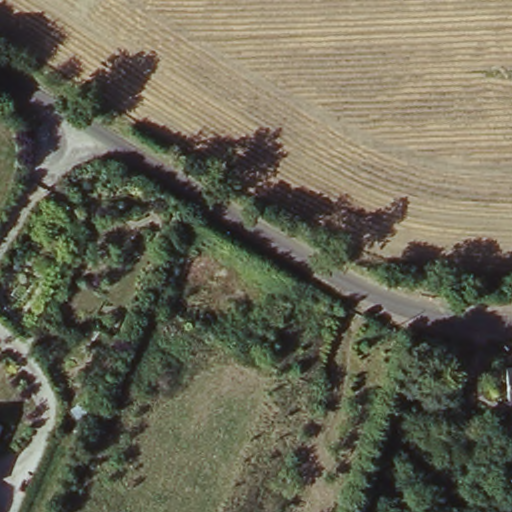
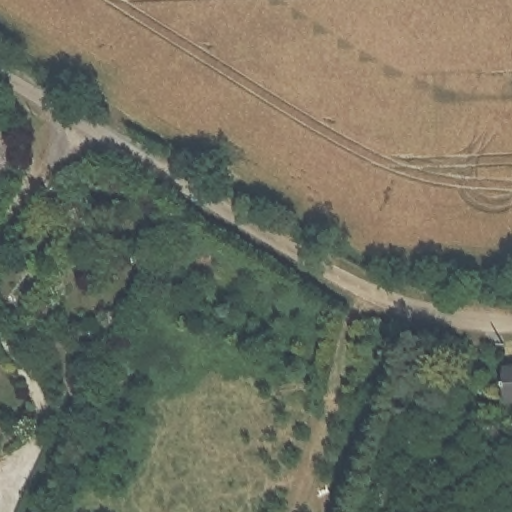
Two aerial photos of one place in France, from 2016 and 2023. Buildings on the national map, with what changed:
unchanged [(507,401),(505,368),(512,368),(512,401),(507,401)]
unchanged [(0,428),(0,421),(2,422),(0,428)]

